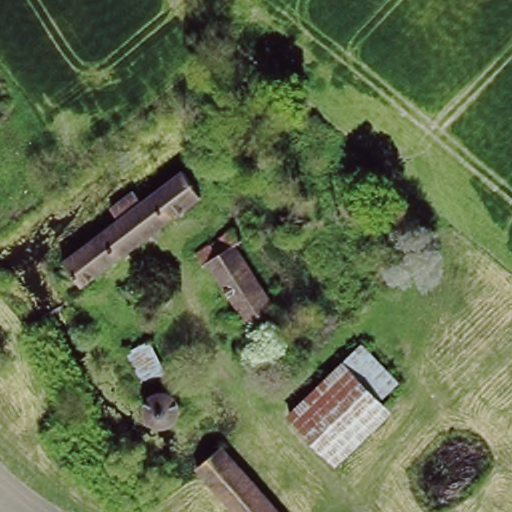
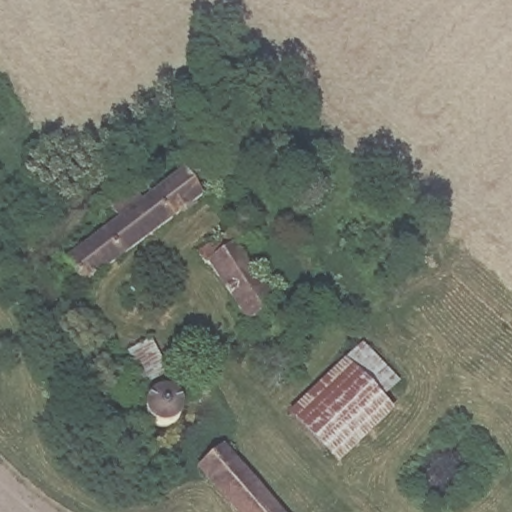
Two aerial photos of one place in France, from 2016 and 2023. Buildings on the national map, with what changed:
unchanged [(126,223),(117,212),(137,196),(146,208),(186,176),(204,198),(90,291),(86,286),(80,291),(70,279),(76,274),(71,267),(126,223)]
unchanged [(230,227),(241,243),(234,247),(274,305),(250,321),(211,264),(204,269),(194,254),(230,227)]
unchanged [(143,407),(123,359),(151,339),(174,385),(158,387),(143,407)]
unchanged [(360,351),(396,387),(376,406),(341,369),(360,351)]
unchanged [(389,421),(335,472),(288,421),(341,369),(376,406),(389,421)]
unchanged [(158,387),(171,388),(178,392),(188,403),(189,410),(188,420),(181,431),(171,432),(162,431),(156,429),(150,425),(143,407),(158,387)]
unchanged [(277,512),(231,512),(196,472),(221,450),(277,512)]

